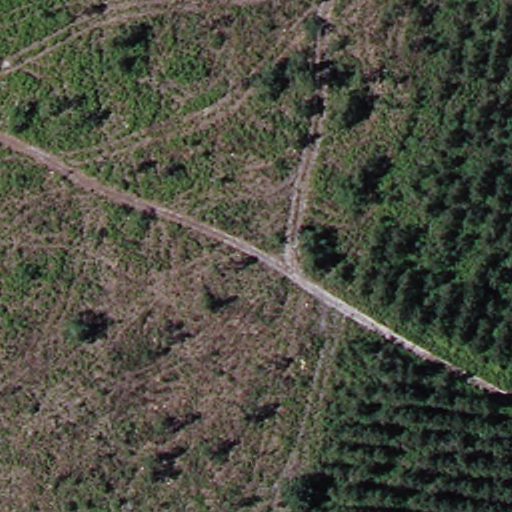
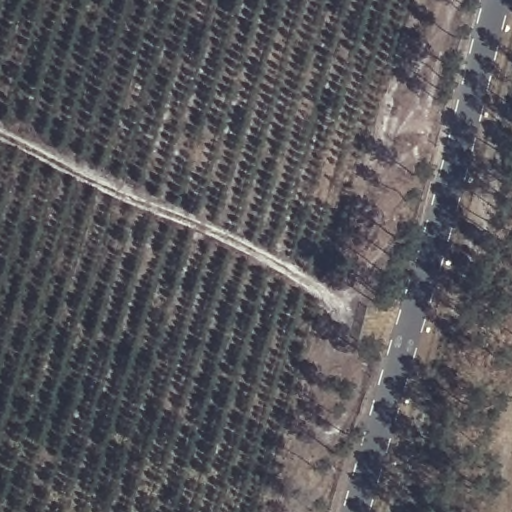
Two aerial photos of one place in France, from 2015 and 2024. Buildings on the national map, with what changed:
[]

